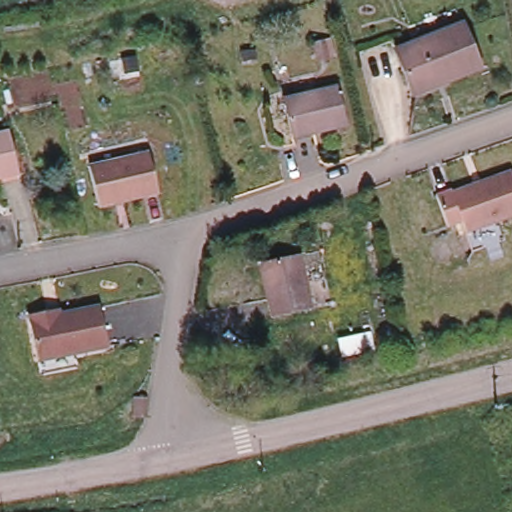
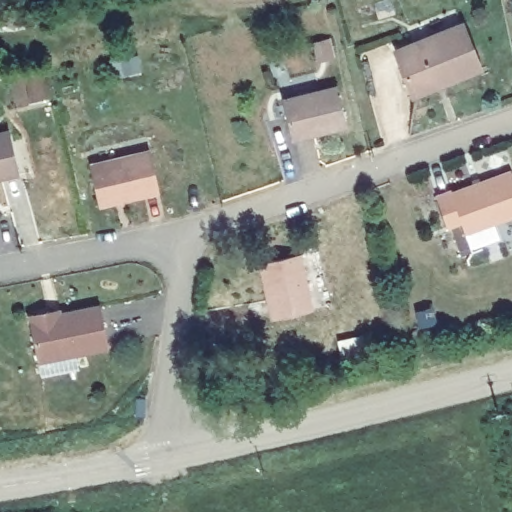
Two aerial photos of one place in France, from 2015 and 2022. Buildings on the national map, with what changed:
unchanged [(416,97),(414,92),(410,81),(397,45),(465,20),(482,66),(449,79),(452,85),(416,97)]
unchanged [(322,41),(326,56),(315,59),(312,44),(322,41)]
unchanged [(283,99),(336,86),(345,125),(313,132),(312,130),(291,134),(283,99)]
unchanged [(17,173),(0,177),(0,134),(7,132),(17,173)]
unchanged [(150,151),(159,191),(99,205),(90,165),(150,151)]
unchanged [(435,194),(450,189),(452,191),(511,170),(512,173),(512,215),(498,220),(465,232),(461,220),(447,226),(435,194)]
unchanged [(299,255),(311,308),(273,317),(261,262),(299,255)]
unchanged [(41,375),(38,360),(29,314),(49,310),(57,308),(59,313),(99,306),(108,346),(74,353),(77,367),(41,375)]
unchanged [(140,395),(150,396),(146,415),(137,410),(140,395)]

